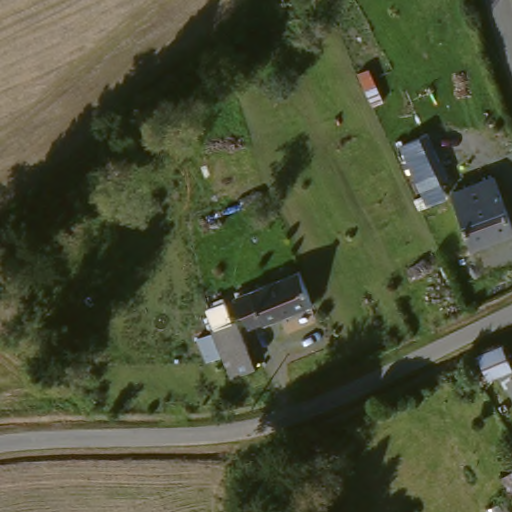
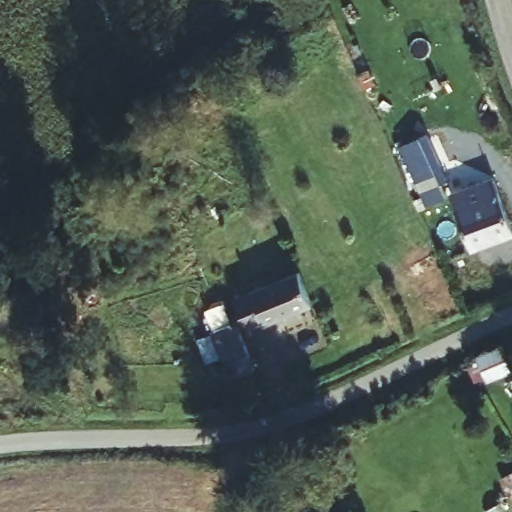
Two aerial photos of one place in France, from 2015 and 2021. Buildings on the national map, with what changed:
unchanged [(419,139),(433,173),(443,201),(419,210),(396,146),(419,139)]
unchanged [(491,180),(512,237),(512,239),(471,254),(450,195),(491,180)]
unchanged [(294,275),(308,305),(268,326),(266,322),(251,330),(237,301),(294,275)]
unchanged [(491,352),(506,380),(483,392),(468,363),(491,352)]
unchanged [(511,400),(512,399),(512,402),(511,400)]
unchanged [(511,490),(512,489),(512,492),(511,490)]
unchanged [(294,512),(265,512),(262,506),(284,495),(294,512)]

